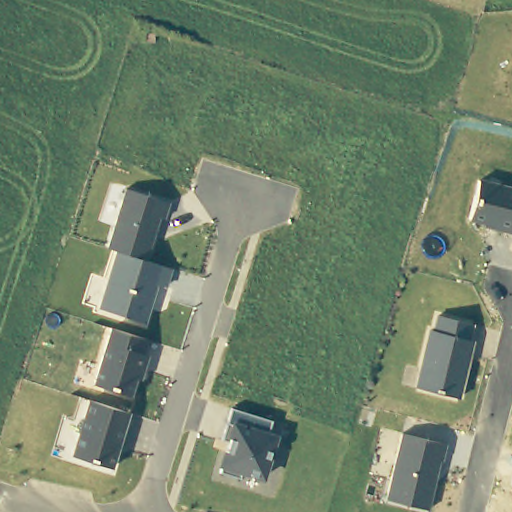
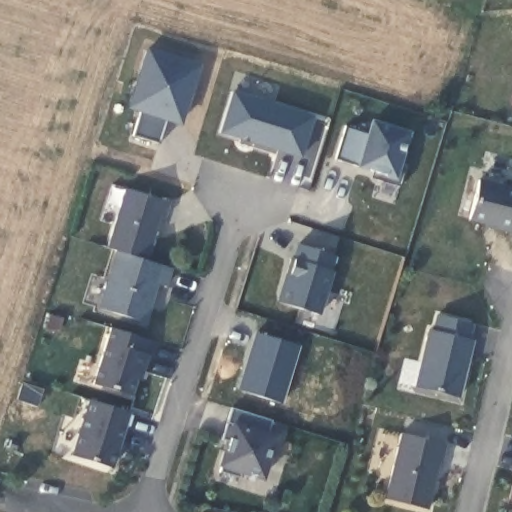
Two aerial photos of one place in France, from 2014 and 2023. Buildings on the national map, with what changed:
new [(202,64),(183,126),(166,121),(159,144),(132,137),(141,112),(128,108),(147,47),(202,64)]
new [(302,159),(221,132),(234,92),(317,117),(302,159)]
new [(397,178),(402,179),(400,186),(371,178),(372,172),(335,160),(345,127),(367,135),(372,120),(411,132),(397,178)]
unchanged [(512,187),(512,233),(485,227),(485,223),(470,220),(481,180),(512,187)]
unchanged [(131,190),(175,204),(170,220),(165,219),(152,262),(145,260),(112,250),(131,190)]
new [(278,302),(297,242),(337,256),(318,315),(278,302)]
unchanged [(117,251),(145,260),(152,262),(172,268),(167,287),(157,283),(144,323),(100,307),(117,251)]
unchanged [(438,330),(442,331),(447,315),(481,323),(477,339),(481,340),(466,397),(424,387),(438,330)]
unchanged [(149,355),(153,356),(148,372),(143,371),(136,397),(97,385),(115,329),(116,329),(153,341),(149,355)]
unchanged [(89,400),(130,412),(112,468),(71,455),(89,400)]
unchanged [(272,435),(280,437),(267,478),(247,472),(245,478),(224,472),(234,442),(227,440),(237,408),(273,421),(277,422),(272,435)]
unchanged [(454,443),(450,460),(447,460),(435,508),(392,497),(410,432),(454,443)]

